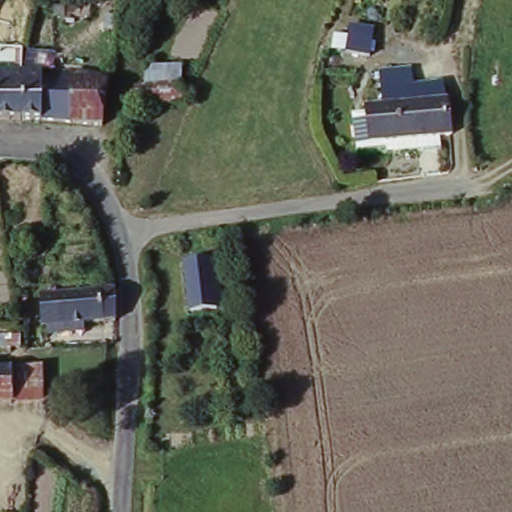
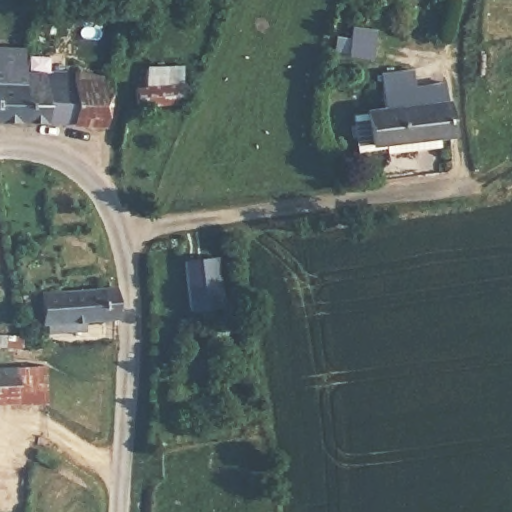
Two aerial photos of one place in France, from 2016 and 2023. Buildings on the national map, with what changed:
unchanged [(21,5),(22,21),(0,21),(0,0),(5,0),(5,2),(21,5)]
unchanged [(185,11),(163,9),(163,0),(186,0),(185,11)]
unchanged [(349,25),(373,28),(370,47),(346,45),(349,25)]
unchanged [(147,65),(183,59),(187,97),(139,100),(135,84),(145,82),(147,65)]
unchanged [(370,144),(354,145),(351,110),(365,109),(365,105),(382,104),(380,67),(410,65),(411,82),(442,76),(450,129),(437,131),(438,141),(384,148),(383,142),(370,144)]
unchanged [(33,67),(57,66),(75,69),(106,76),(97,122),(46,115),(19,115),(17,67),(33,67)]
unchanged [(0,115),(0,67),(16,67),(17,67),(19,115),(0,115)]
unchanged [(182,268),(207,265),(216,263),(221,310),(215,311),(189,313),(182,268)]
unchanged [(38,319),(35,290),(111,280),(113,312),(38,319)]
unchanged [(37,368),(39,404),(11,405),(0,406),(0,370),(10,370),(37,368)]

